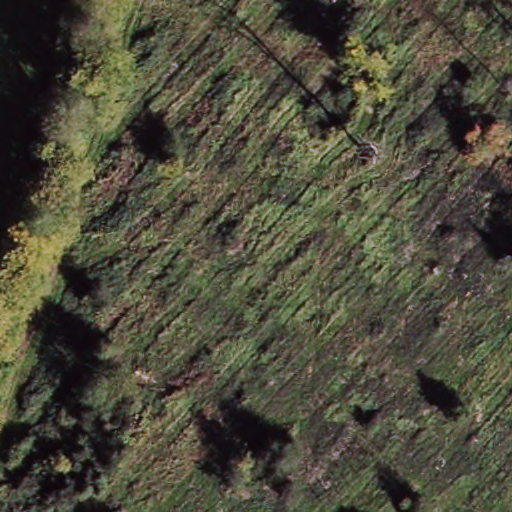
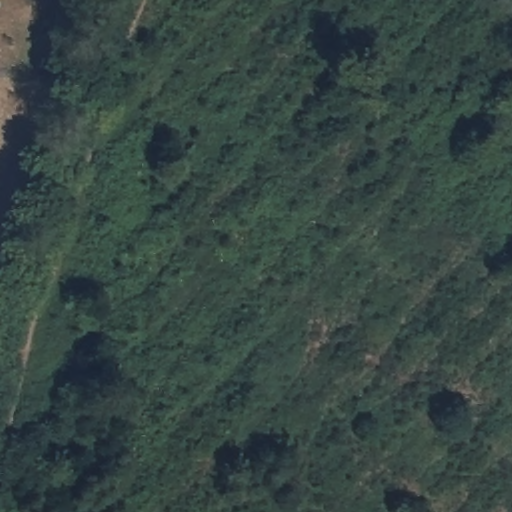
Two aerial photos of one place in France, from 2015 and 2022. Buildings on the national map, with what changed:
[]

